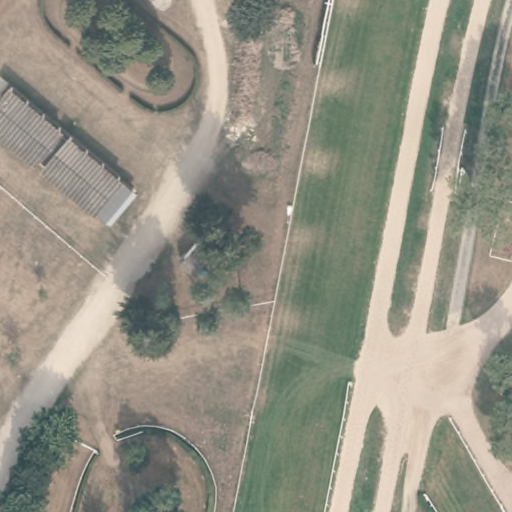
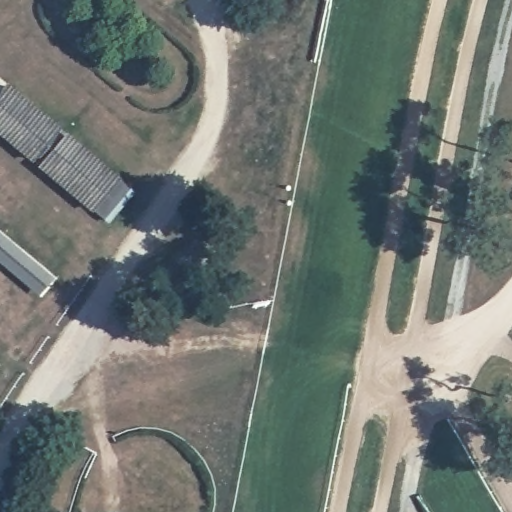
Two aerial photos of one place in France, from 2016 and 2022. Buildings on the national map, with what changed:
unchanged [(29,160),(0,136),(0,94),(6,87),(55,127),(49,136),(33,155),(29,160)]
unchanged [(65,136),(114,178),(89,210),(37,167),(58,144),(65,136)]
new [(0,234),(56,280),(42,296),(0,262),(0,234)]
unchanged [(179,263),(198,240),(212,252),(194,275),(179,263)]

